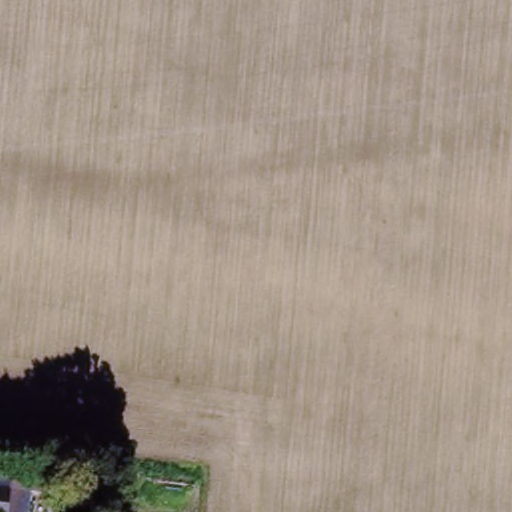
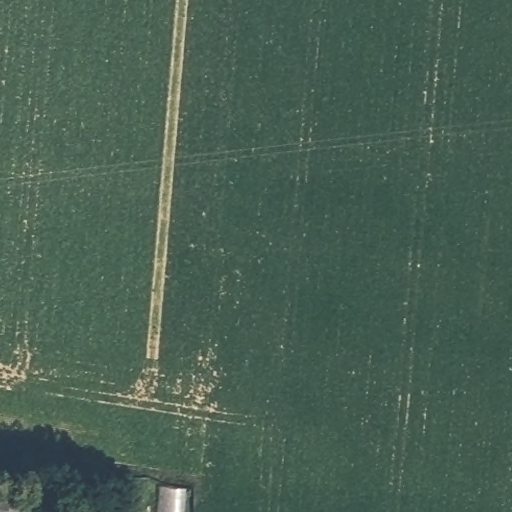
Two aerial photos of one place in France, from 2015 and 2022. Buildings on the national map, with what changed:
unchanged [(5,488),(7,474),(51,478),(49,495),(26,493),(25,512),(0,512),(0,487),(5,488)]

